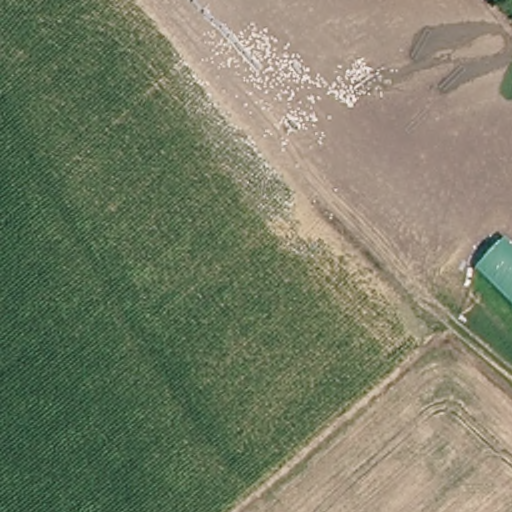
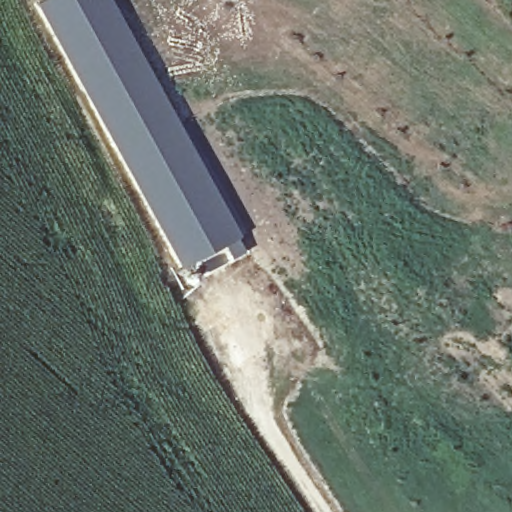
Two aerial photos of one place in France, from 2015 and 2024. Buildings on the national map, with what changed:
new [(36,3),(42,0),(110,0),(239,235),(180,267),(36,3)]

